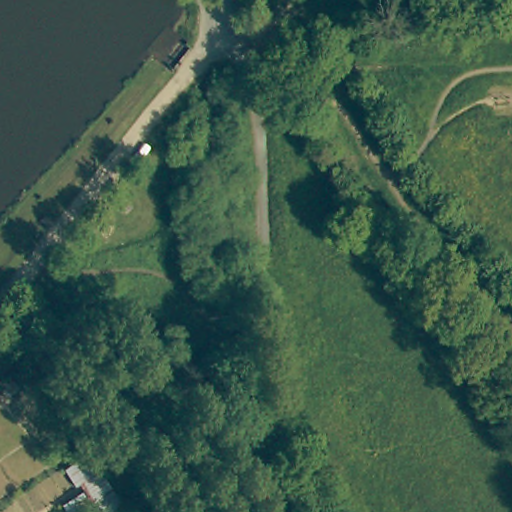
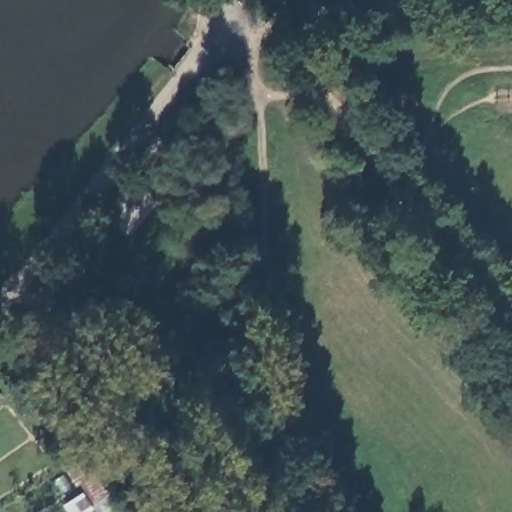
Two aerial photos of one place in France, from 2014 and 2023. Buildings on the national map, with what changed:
unchanged [(89,512),(62,471),(93,452),(132,511),(131,512),(89,512)]

